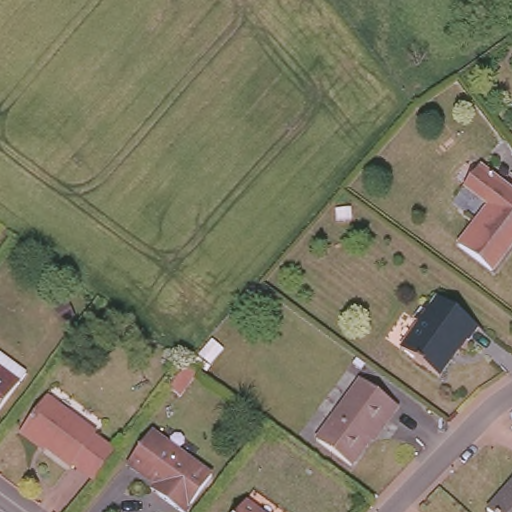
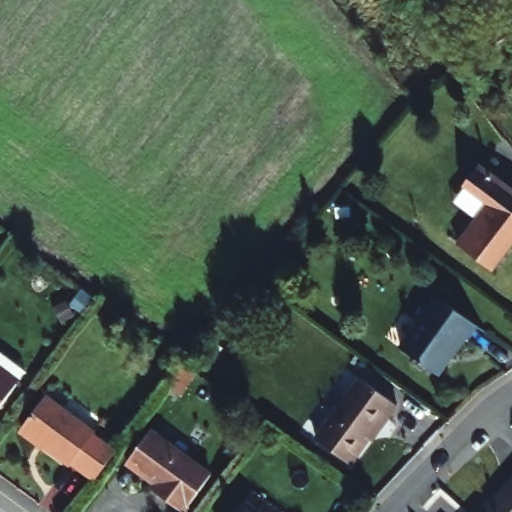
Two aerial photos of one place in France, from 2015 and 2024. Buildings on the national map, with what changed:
unchanged [(512,186),(512,203),(512,204),(512,227),(488,260),(455,236),(484,196),(460,178),(473,158),(512,186)]
unchanged [(481,329),(471,343),(467,341),(440,376),(404,350),(423,325),(417,321),(416,320),(427,305),(428,305),(433,309),(441,300),(481,329)]
unchanged [(201,370),(183,394),(172,386),(190,362),(201,370)]
unchanged [(0,406),(0,363),(22,378),(0,406)]
unchanged [(393,407),(383,420),(380,417),(345,463),(312,439),(355,380),(393,407)]
unchanged [(97,430),(94,434),(117,451),(97,477),(75,460),(72,463),(22,427),(47,394),(97,430)]
unchanged [(208,476),(180,512),(155,494),(158,490),(123,465),(147,433),(208,476)]
unchanged [(493,512),(485,504),(512,474),(512,512),(493,512)]
unchanged [(233,512),(240,503),(253,512),(233,512)]

